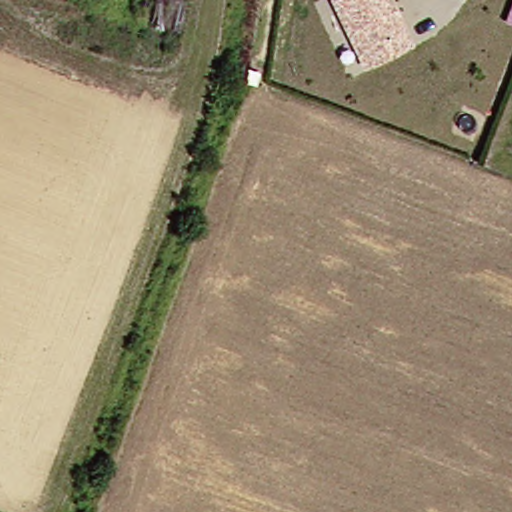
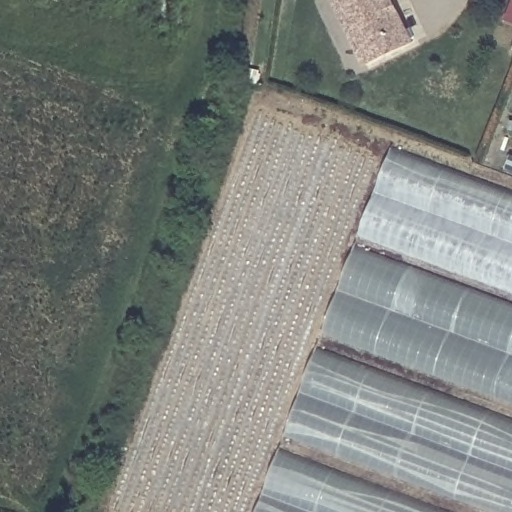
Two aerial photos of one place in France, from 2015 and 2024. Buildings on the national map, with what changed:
unchanged [(402,15),(416,42),(370,65),(336,0),(395,0),(402,15)]
new [(259,512),(393,151),(512,195),(512,512),(259,512)]

